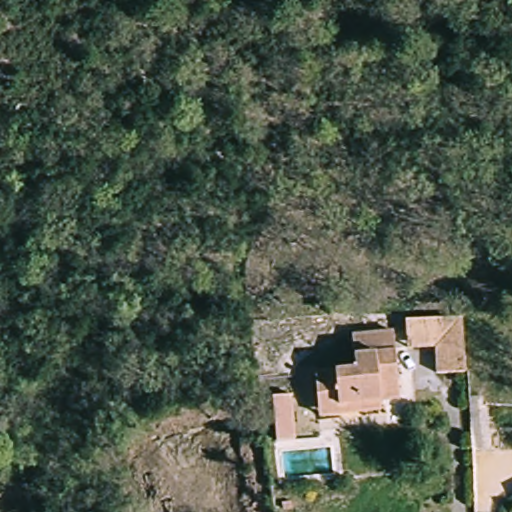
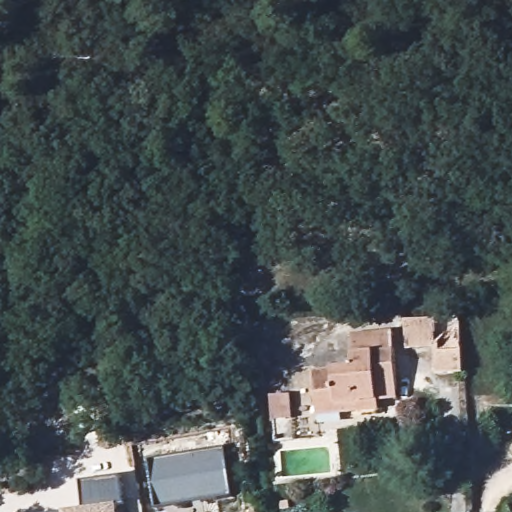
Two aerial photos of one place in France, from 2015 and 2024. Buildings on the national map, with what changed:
unchanged [(431,376),(430,350),(402,350),(403,321),(430,320),(458,319),(459,377),(431,376)]
unchanged [(391,397),(371,397),(372,405),(351,406),(351,415),(327,414),(326,405),(314,405),(313,370),(353,370),(352,339),(389,338),(391,397)]
unchanged [(291,441),(274,441),(273,398),(291,398),(291,441)]
new [(156,488),(151,456),(226,445),(234,494),(177,503),(158,505),(156,488)]
new [(79,482),(120,477),(123,503),(116,504),(117,512),(61,512),(81,508),(79,482)]

